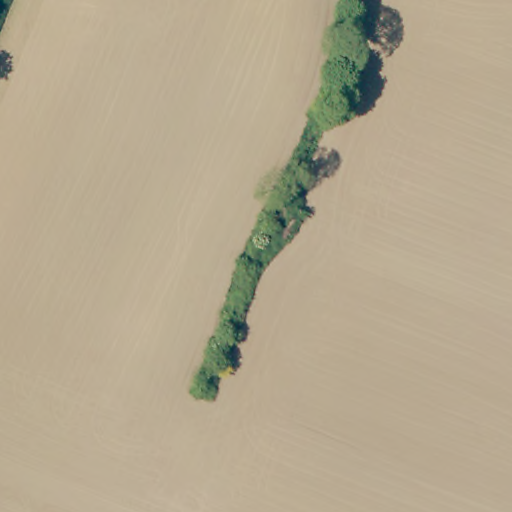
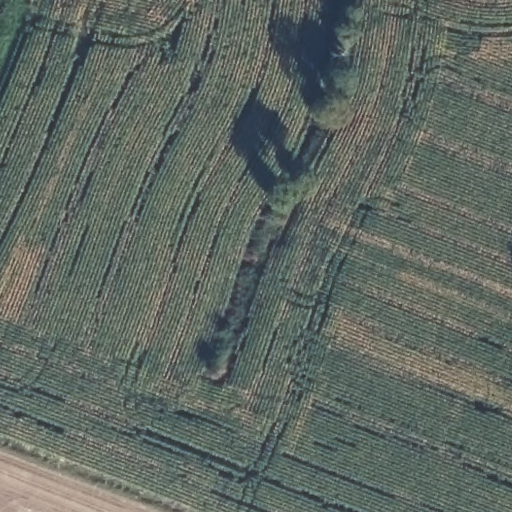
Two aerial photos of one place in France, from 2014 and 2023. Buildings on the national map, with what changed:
[]

